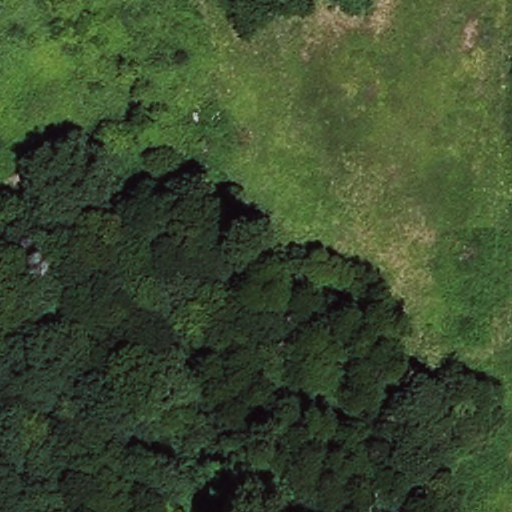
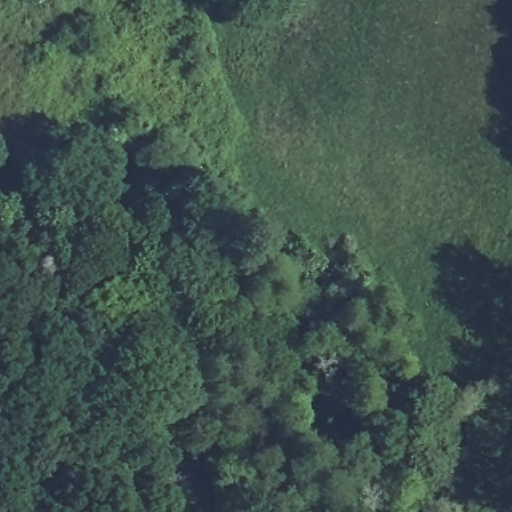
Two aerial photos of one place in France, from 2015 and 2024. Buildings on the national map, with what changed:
unchanged [(0,189),(0,179),(25,170),(33,190),(4,201),(0,189)]

